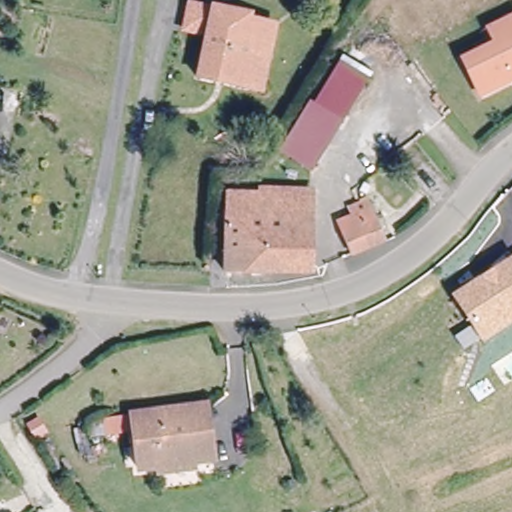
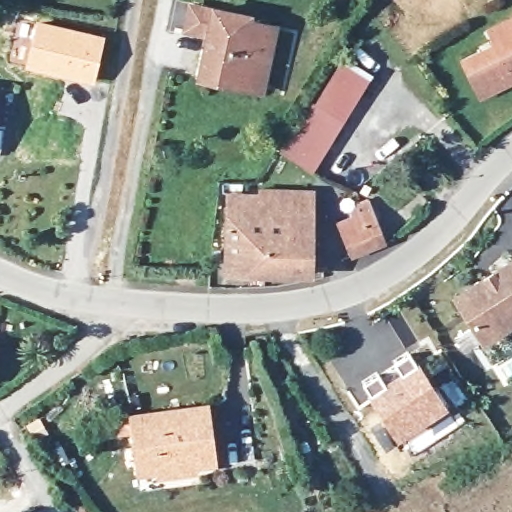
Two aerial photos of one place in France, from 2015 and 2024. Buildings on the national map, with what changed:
unchanged [(200,80),(202,73),(215,9),(249,17),(249,20),(275,26),(270,50),(262,91),(249,88),(233,84),(232,87),(200,80)]
unchanged [(463,60),(491,46),(496,44),(489,29),(512,18),(512,81),(481,96),(463,60)]
new [(36,19),(106,35),(95,82),(24,67),(36,19)]
unchanged [(323,100),(352,52),(379,69),(351,117),(323,100)]
unchanged [(320,168),(287,149),(318,97),(323,100),(351,117),(320,168)]
unchanged [(228,194),(250,194),(259,195),(259,178),(310,180),(310,196),(310,218),(309,274),(225,273),(228,194)]
unchanged [(357,204),(364,201),(373,221),(367,224),(375,245),(348,256),(334,222),(349,216),(346,209),(357,204)]
unchanged [(512,258),(512,310),(500,318),(492,323),(486,315),(469,325),(451,297),(510,259),(512,258)]
new [(378,373),(385,384),(402,373),(394,362),(409,352),(441,400),(442,399),(444,401),(396,432),(363,383),(378,373)]
unchanged [(209,457),(140,466),(133,411),(202,402),(209,457)]

